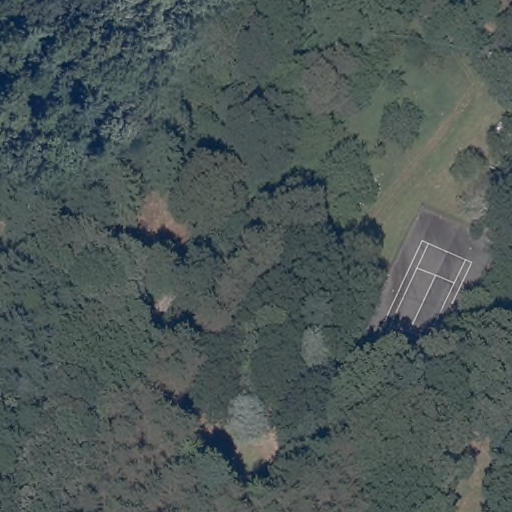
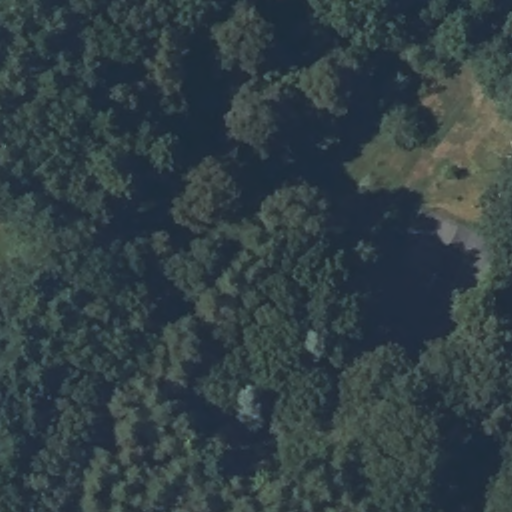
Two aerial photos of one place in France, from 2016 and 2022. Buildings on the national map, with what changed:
unchanged [(37,253),(52,265),(42,276),(27,264),(37,253)]
unchanged [(507,360),(512,362),(512,385),(501,381),(507,360)]
unchanged [(393,471),(407,476),(399,496),(386,491),(393,471)]

